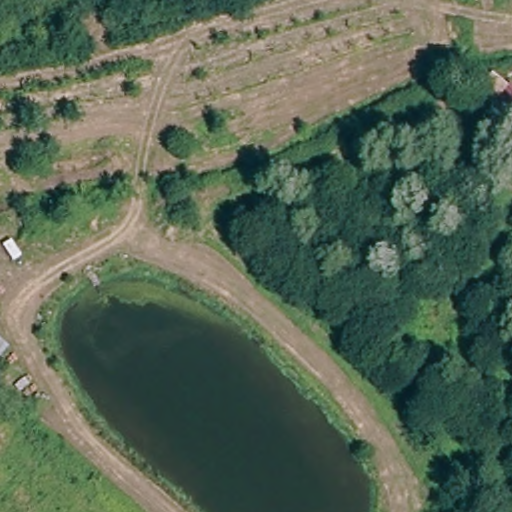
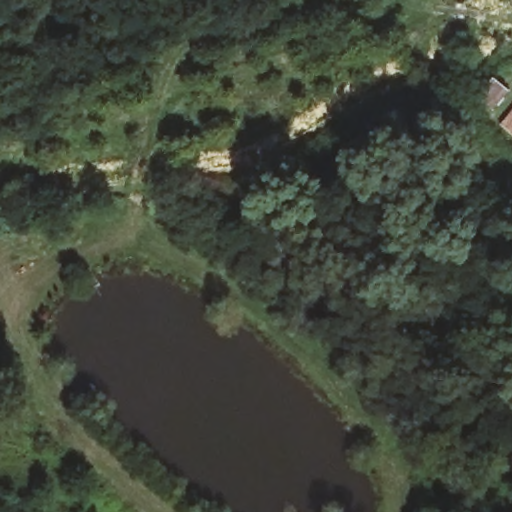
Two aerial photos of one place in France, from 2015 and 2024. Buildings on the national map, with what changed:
unchanged [(470,100),(491,72),(512,93),(512,138),(470,100)]
unchanged [(0,375),(0,339),(20,358),(3,378),(0,375)]

